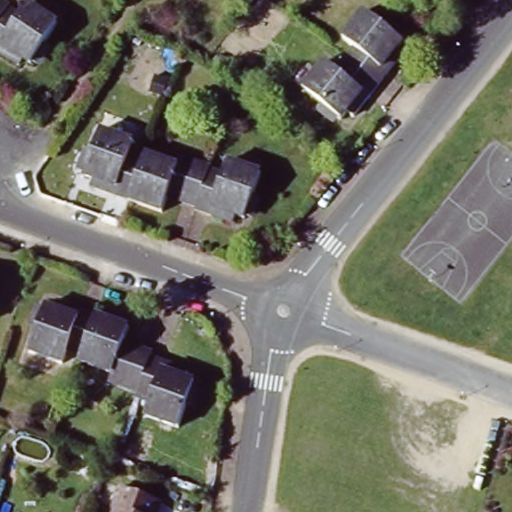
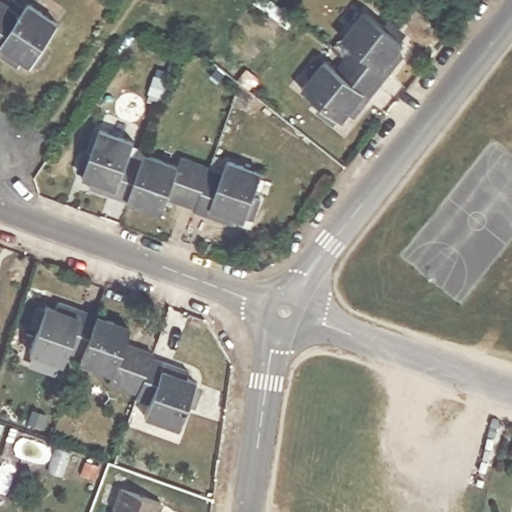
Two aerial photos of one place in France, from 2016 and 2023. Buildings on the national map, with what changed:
unchanged [(4,0),(10,3),(10,4),(8,5),(0,18),(0,0),(4,0)]
unchanged [(31,63),(23,57),(20,63),(0,49),(0,18),(8,5),(10,6),(22,14),(30,4),(60,23),(31,63)]
unchanged [(345,60),(355,49),(344,40),(367,13),(405,43),(398,51),(405,56),(380,87),(345,60)]
unchanged [(353,119),(348,115),(343,121),(304,91),(326,63),(336,71),(345,60),(380,87),(353,119)]
unchanged [(128,204),(90,191),(93,184),(83,180),(98,134),(133,145),(129,160),(142,164),(128,204)]
unchanged [(160,215),(128,204),(142,164),(145,157),(176,168),(180,158),(207,167),(206,171),(193,208),(179,204),(165,199),(160,215)]
unchanged [(242,220),(233,216),(230,224),(192,210),(193,208),(206,171),(221,176),(226,162),(259,173),(242,220)]
unchanged [(77,365),(63,360),(58,373),(25,362),(40,315),(51,319),(53,312),(91,325),(77,365)]
unchanged [(144,368),(132,403),(104,393),(107,384),(74,374),(77,365),(91,325),(124,336),(118,353),(133,358),(146,362),(144,368)]
unchanged [(172,437),(138,425),(142,413),(131,409),(132,403),(144,368),(181,380),(178,388),(188,391),(172,437)]
unchanged [(120,510),(117,509),(123,491),(165,505),(162,512),(119,512),(120,510)]

